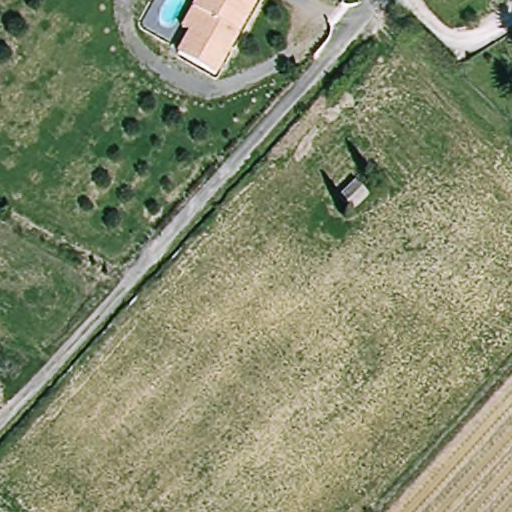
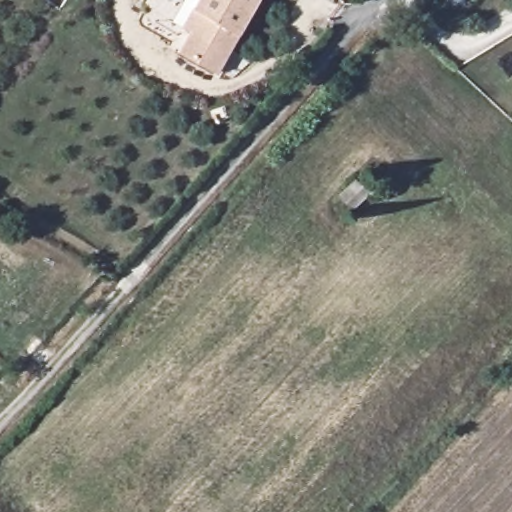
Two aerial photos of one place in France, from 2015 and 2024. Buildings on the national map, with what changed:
unchanged [(183,57),(195,37),(184,30),(202,0),(259,0),(215,75),(183,57)]
unchanged [(368,191),(353,207),(337,194),(355,177),(368,191)]

